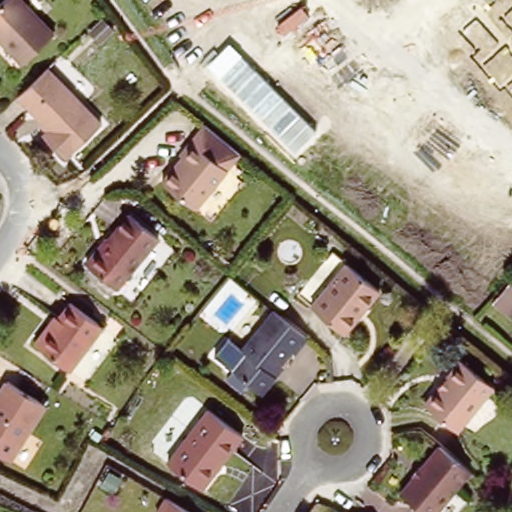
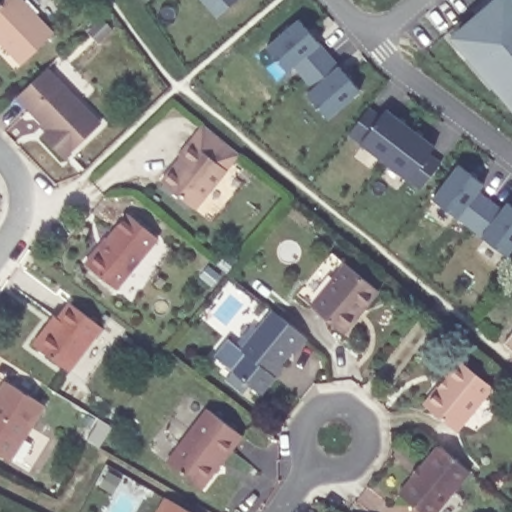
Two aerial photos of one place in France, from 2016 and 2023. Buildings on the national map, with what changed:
unchanged [(22,60),(0,38),(0,0),(24,0),(53,30),(22,60)]
new [(226,0),(240,0),(232,7),(226,0)]
new [(500,90),(470,56),(470,57),(455,39),(461,34),(460,32),(493,3),(505,15),(512,9),(512,110),(497,93),(500,90)]
unchanged [(114,27),(100,40),(88,29),(103,15),(114,27)]
new [(300,21),(330,56),(305,78),(296,67),(289,73),(268,49),(300,21)]
new [(330,56),(361,92),(329,119),(308,95),(315,89),(305,78),(330,56)]
unchanged [(51,61),(107,116),(72,151),(48,129),(55,123),(22,89),(51,61)]
new [(370,108),(382,117),(387,110),(437,148),(432,154),(443,163),(423,189),(350,134),(370,108)]
unchanged [(242,151),(196,205),(163,178),(185,153),(182,150),(206,121),(242,151)]
new [(460,165),(486,185),(480,192),(492,201),(505,210),(510,203),(512,205),(512,253),(510,255),(435,199),(460,165)]
unchanged [(160,235),(118,284),(87,259),(108,233),(110,235),(132,211),(160,235)]
unchanged [(378,290),(342,332),(310,303),(345,262),(378,290)]
unchanged [(102,323),(69,367),(33,341),(50,321),(53,322),(70,298),(102,323)]
unchanged [(232,353),(240,359),(249,348),(246,345),(277,308),(310,335),(298,350),(295,348),(275,370),(278,373),(265,390),(235,365),(227,358),(232,353)]
unchanged [(491,382),(455,426),(423,400),(460,356),(491,382)]
unchanged [(12,457),(0,451),(0,389),(7,379),(45,401),(12,457)]
unchanged [(203,489),(169,462),(210,409),(245,435),(203,489)]
unchanged [(473,465),(433,511),(402,486),(442,438),(473,465)]
unchanged [(168,496),(193,512),(159,512),(168,496)]

